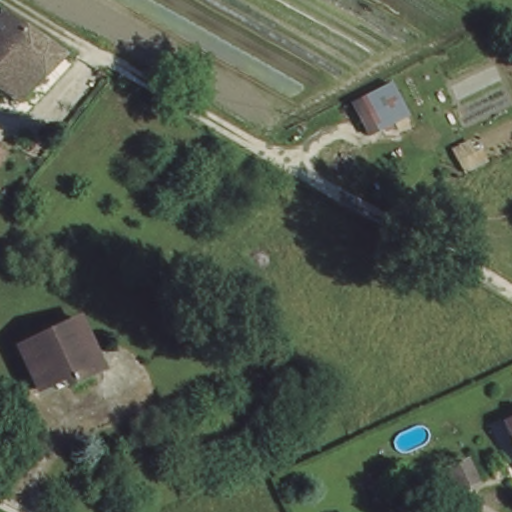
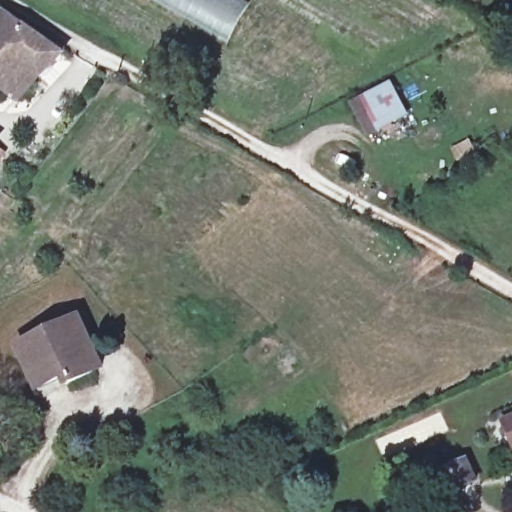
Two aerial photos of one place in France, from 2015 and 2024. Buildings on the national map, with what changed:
new [(152,0),(240,0),(250,5),(229,44),(152,0)]
unchanged [(62,57),(18,97),(0,86),(0,19),(4,16),(19,24),(62,57)]
unchanged [(370,130),(358,126),(348,99),(397,79),(409,114),(370,130)]
unchanged [(0,168),(0,159),(4,162),(0,168)]
unchanged [(99,353),(93,357),(101,375),(76,386),(70,372),(40,386),(22,348),(84,322),(99,353)]
unchanged [(505,414),(512,411),(512,430),(505,414)]
unchanged [(475,472),(440,487),(432,467),(465,452),(475,472)]

